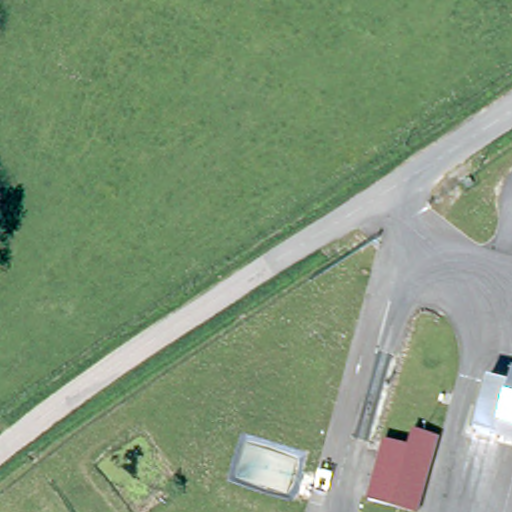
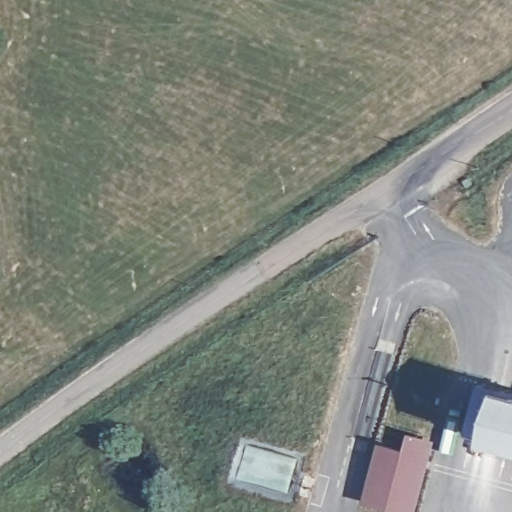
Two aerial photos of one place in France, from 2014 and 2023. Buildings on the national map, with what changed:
unchanged [(507,388),(492,438),(467,432),(481,381),(507,388)]
unchanged [(512,389),(512,444),(492,438),(507,388),(512,389)]
unchanged [(378,448),(401,455),(406,438),(431,446),(413,512),(392,512),(363,503),(378,448)]

